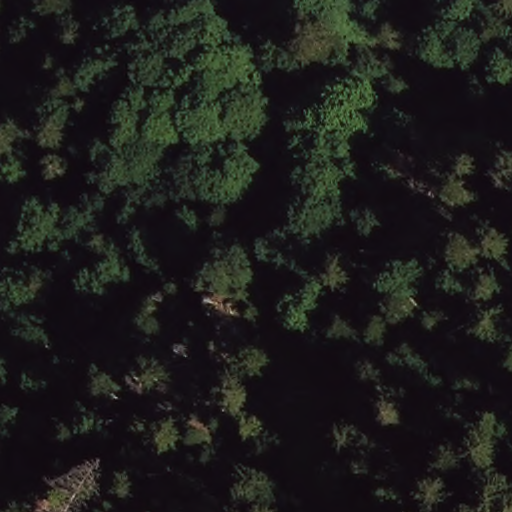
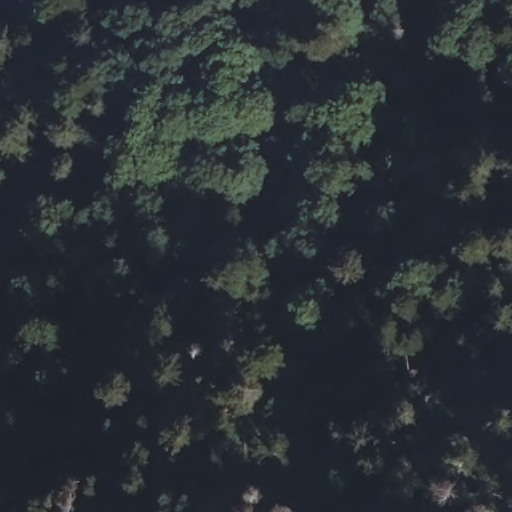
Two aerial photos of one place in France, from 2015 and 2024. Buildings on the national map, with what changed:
unchanged [(38,0),(66,42),(1,74),(0,73),(0,1),(1,0),(38,0)]

